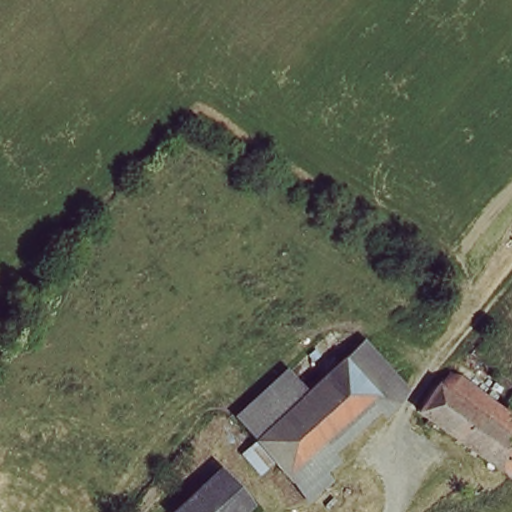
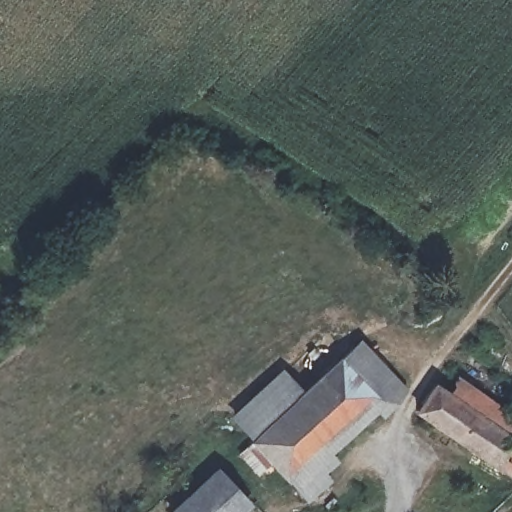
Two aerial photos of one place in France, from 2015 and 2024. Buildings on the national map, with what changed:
unchanged [(386,423),(380,417),(333,458),(339,467),(329,478),(337,487),(310,509),(272,468),(260,480),(238,458),(253,445),(231,421),(282,371),(302,394),(359,340),(409,394),(386,423)]
unchanged [(447,374),(512,420),(512,449),(499,467),(419,409),(447,374)]
unchanged [(494,473),(499,467),(512,449),(512,483),(510,485),(494,473)]
unchanged [(250,510),(248,512),(184,512),(219,477),(250,510)]

